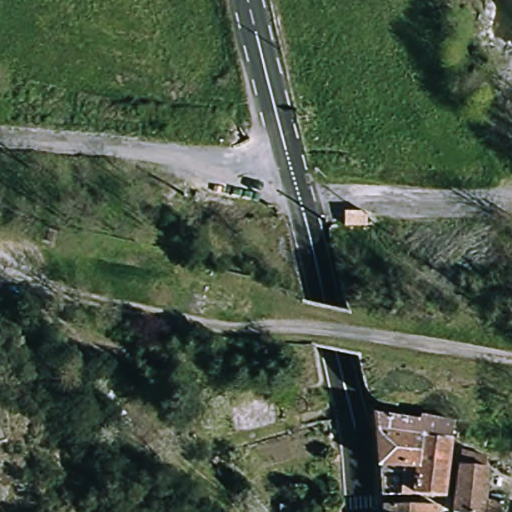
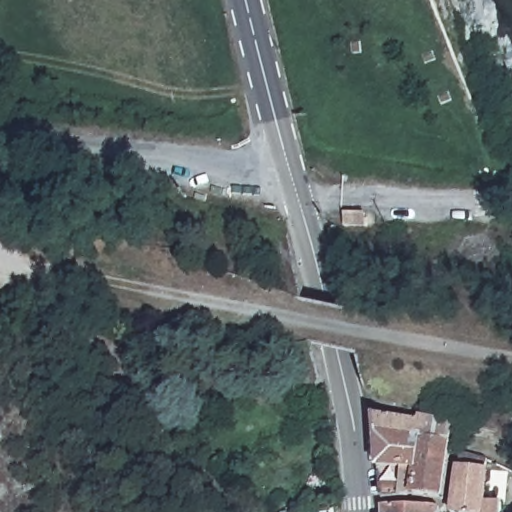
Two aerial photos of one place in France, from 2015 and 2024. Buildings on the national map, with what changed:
unchanged [(1,411),(2,417),(6,441),(0,443),(0,408),(1,411)]
unchanged [(376,416),(422,423),(423,419),(456,427),(454,439),(453,446),(453,447),(422,440),(420,465),(382,467),(376,416)]
unchanged [(420,465),(422,440),(453,447),(446,497),(421,495),(385,498),(382,467),(420,465)]
unchanged [(490,481),(489,490),(488,501),(505,505),(503,512),(458,512),(454,511),(462,460),(470,463),(476,465),(491,469),(490,481)]
unchanged [(438,501),(442,509),(441,512),(388,512),(387,507),(438,501)]
unchanged [(278,512),(278,510),(337,505),(338,512),(278,512)]

